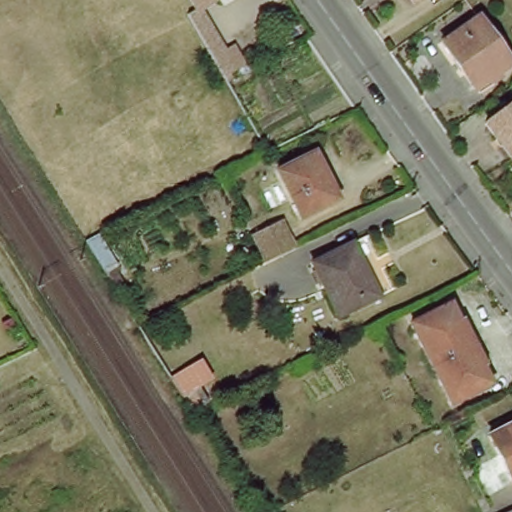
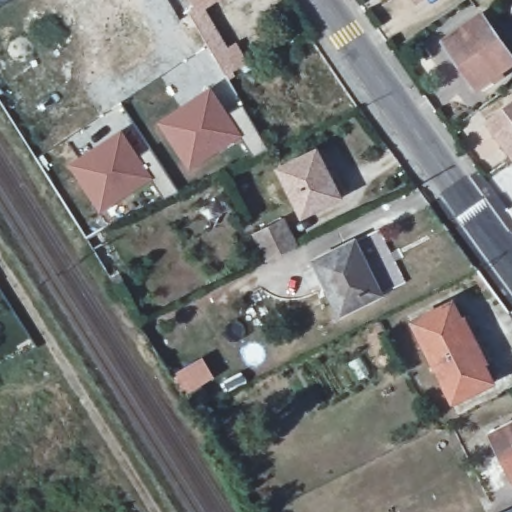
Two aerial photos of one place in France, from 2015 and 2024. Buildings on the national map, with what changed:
unchanged [(205,6),(202,0),(215,0),(205,6)]
unchanged [(426,11),(419,0),(442,0),(426,11)]
unchanged [(211,45),(193,14),(205,6),(225,37),(211,45)]
unchanged [(447,42),(485,14),(512,56),(512,62),(477,87),(447,42)]
new [(211,84),(246,134),(189,172),(155,120),(211,84)]
unchanged [(512,112),(512,143),(497,122),(512,112)]
new [(122,128),(155,177),(100,214),(66,164),(122,128)]
unchanged [(304,219),(281,171),(325,153),(345,200),(304,219)]
unchanged [(271,259),(257,229),(286,215),(300,245),(271,259)]
unchanged [(318,260),(360,241),(385,297),(345,315),(318,260)]
unchanged [(449,400),(413,321),(460,299),(496,378),(449,400)]
unchanged [(512,424),(512,465),(495,430),(512,424)]
unchanged [(512,512),(504,512),(512,508),(512,512)]

